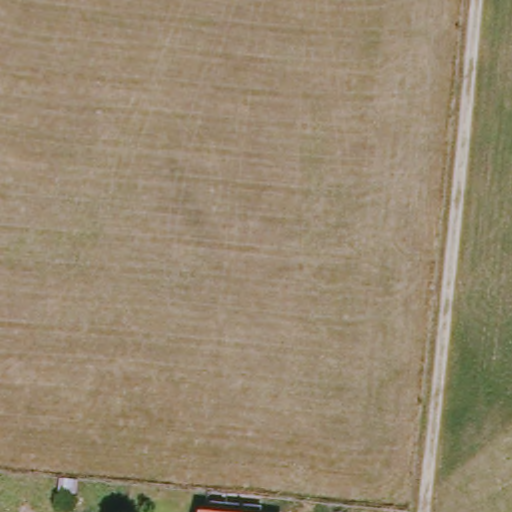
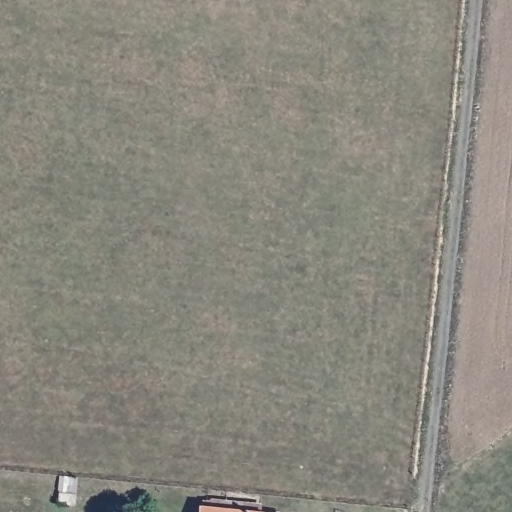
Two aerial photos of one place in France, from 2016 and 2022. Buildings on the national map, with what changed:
unchanged [(262,507),(262,512),(207,512),(207,500),(262,507)]

